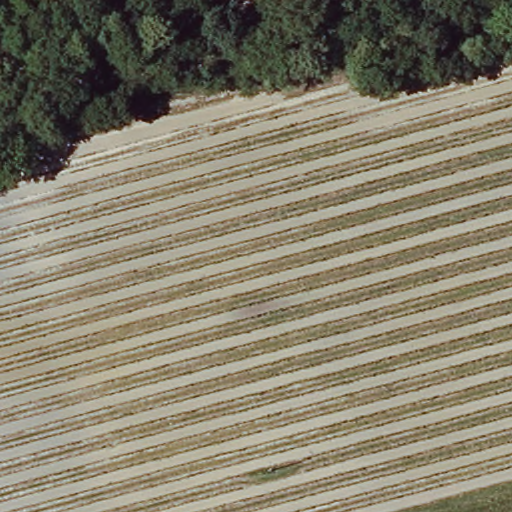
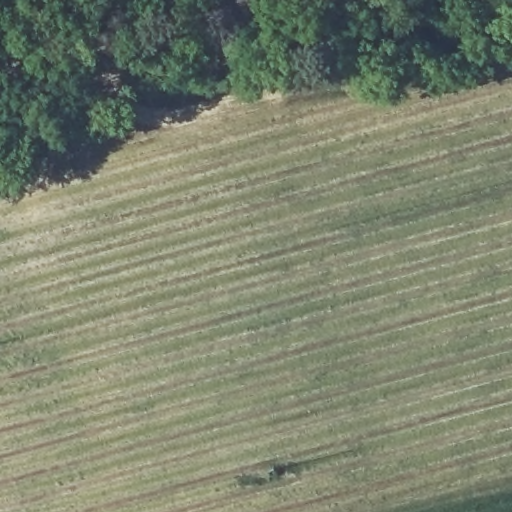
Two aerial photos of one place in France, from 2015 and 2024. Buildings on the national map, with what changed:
[]

